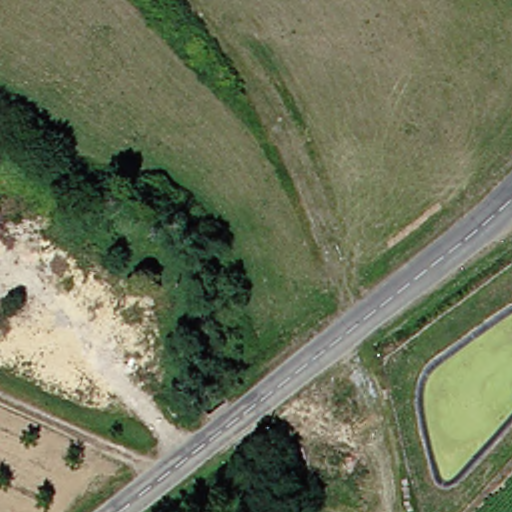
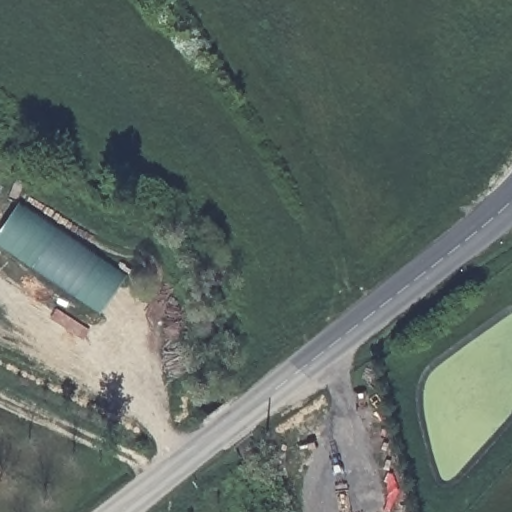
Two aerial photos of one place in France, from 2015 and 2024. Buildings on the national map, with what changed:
new [(126,277),(102,312),(0,246),(0,231),(18,204),(126,277)]
new [(131,236),(138,239),(136,244),(166,257),(161,270),(124,254),(131,236)]

